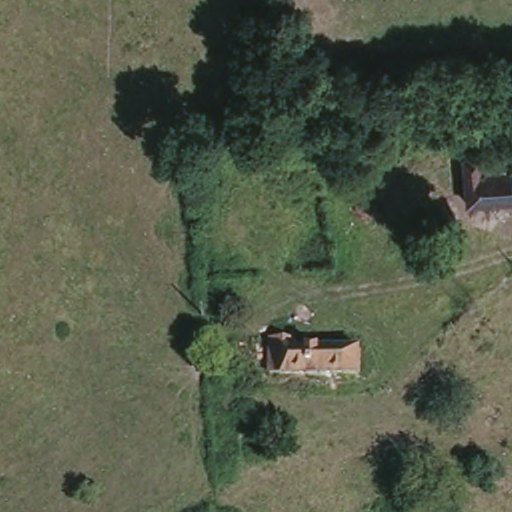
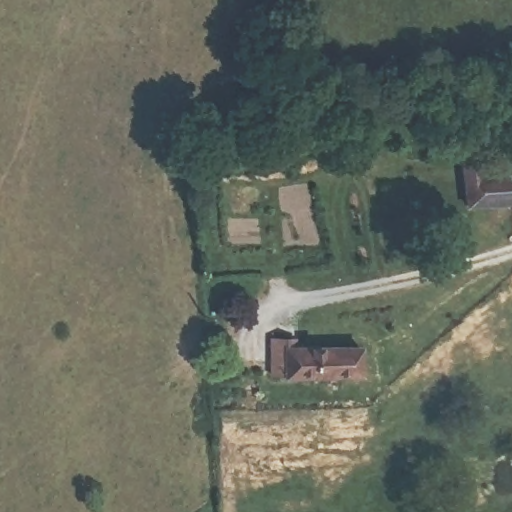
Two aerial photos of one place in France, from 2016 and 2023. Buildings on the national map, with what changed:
unchanged [(476,159),(512,159),(512,209),(464,210),(461,171),(477,172),(476,159)]
unchanged [(266,348),(364,344),(360,371),(268,372),(266,348)]

